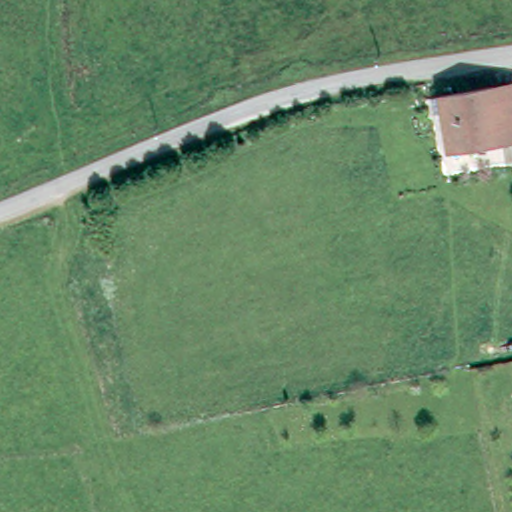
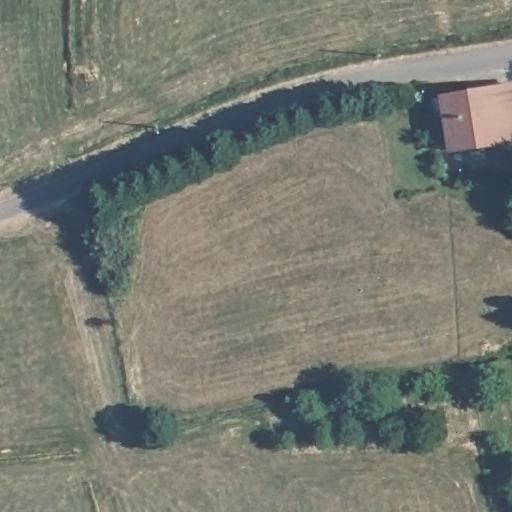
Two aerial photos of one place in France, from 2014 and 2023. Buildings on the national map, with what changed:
unchanged [(479,149),(452,154),(445,110),(436,111),(434,100),(512,88),(512,144),(479,149)]

